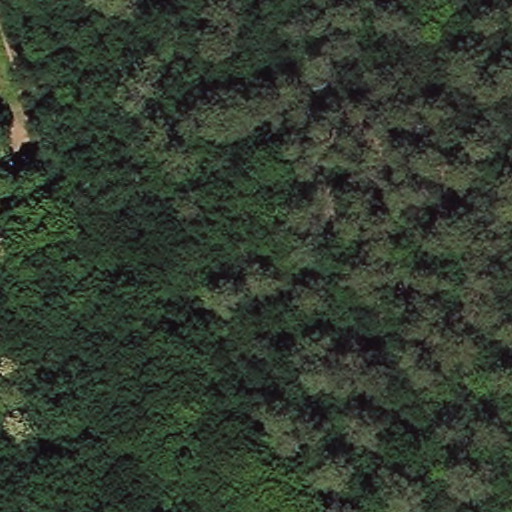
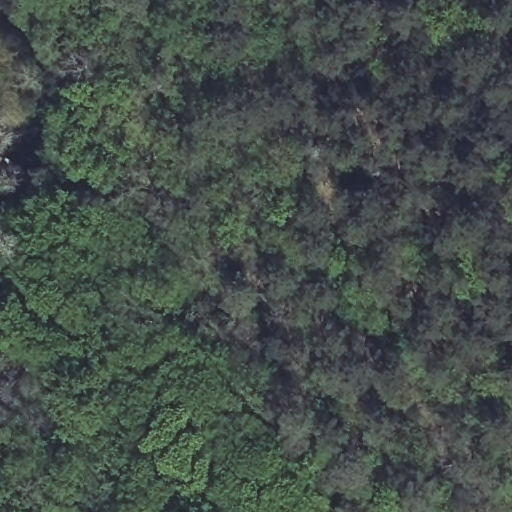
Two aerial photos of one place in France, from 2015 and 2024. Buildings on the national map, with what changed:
[]

